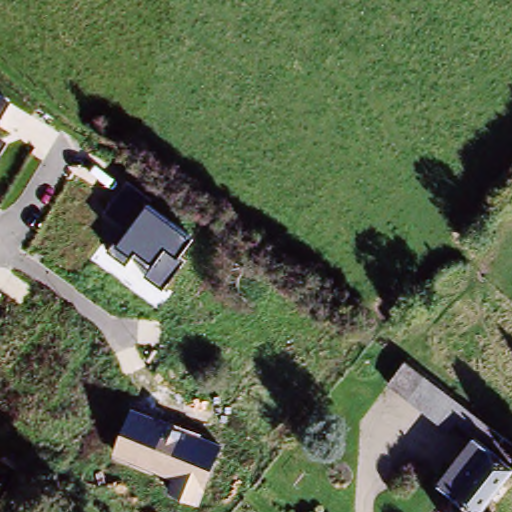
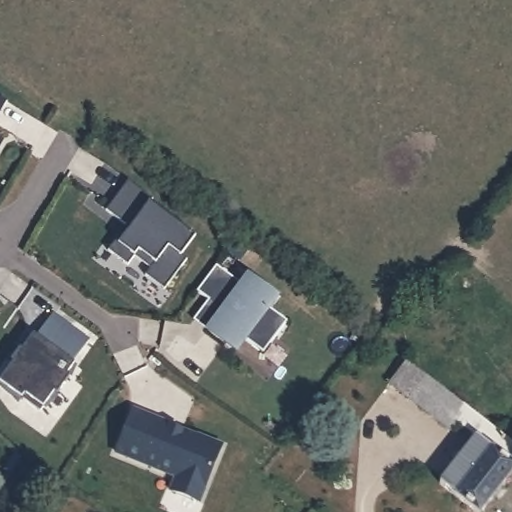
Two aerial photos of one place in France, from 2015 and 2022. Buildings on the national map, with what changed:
unchanged [(0,112),(0,97),(7,100),(0,112)]
unchanged [(0,144),(0,138),(2,139),(0,144)]
unchanged [(194,236),(182,256),(187,262),(167,289),(147,273),(150,268),(135,255),(127,264),(110,251),(120,241),(149,206),(194,236)]
new [(195,293),(215,266),(240,285),(246,276),(268,293),(275,299),(267,310),(284,323),(260,354),(242,340),(232,351),(193,321),(207,302),(195,293)]
new [(14,363),(11,362),(20,348),(22,349),(32,333),(37,336),(52,312),(88,335),(73,359),(76,361),(69,372),(72,374),(60,392),(57,391),(45,411),(25,398),(22,402),(1,382),(14,363)]
unchanged [(477,512),(471,512),(450,495),(484,450),(455,427),(449,436),(402,399),(385,386),(404,362),(421,375),(512,445),(512,464),(512,467),(477,512)]
unchanged [(225,442),(199,504),(167,491),(172,478),(115,454),(137,407),(225,442)]

